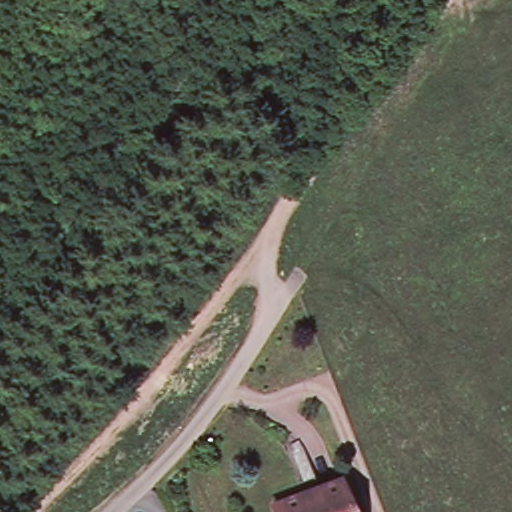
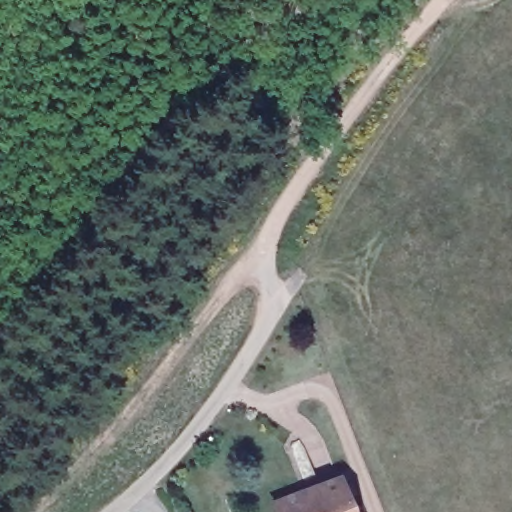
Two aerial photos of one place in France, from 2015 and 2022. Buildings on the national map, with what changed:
unchanged [(340,473),(357,512),(280,512),(275,500),(340,473)]

